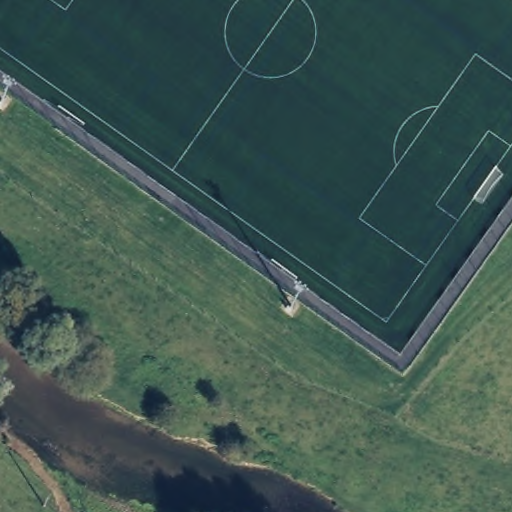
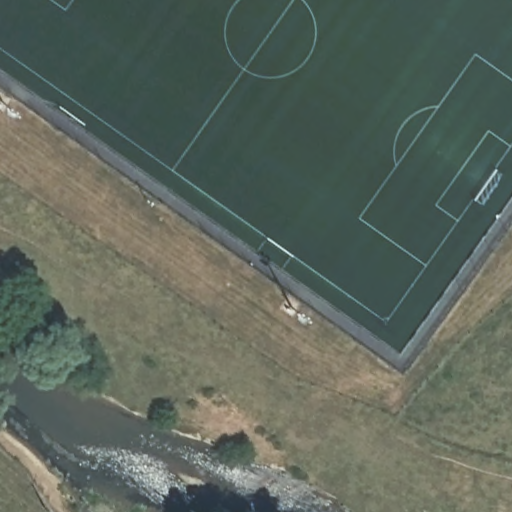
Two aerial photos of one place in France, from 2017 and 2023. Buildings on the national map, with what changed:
[]

